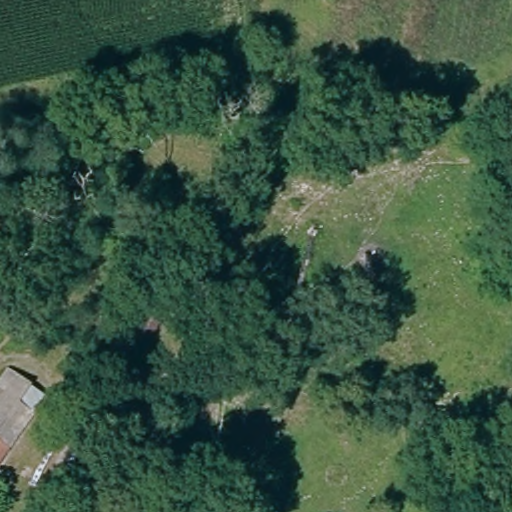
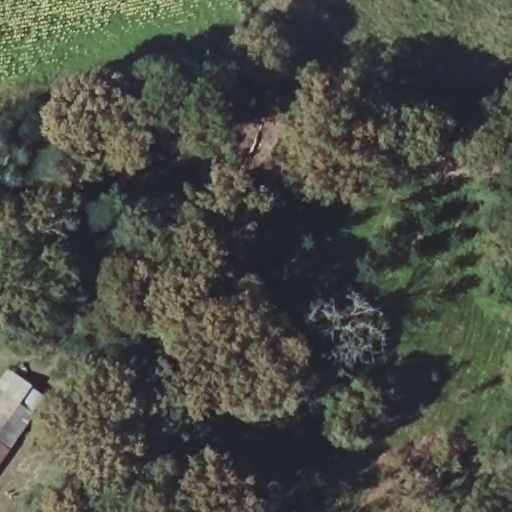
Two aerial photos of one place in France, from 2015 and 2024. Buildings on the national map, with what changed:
unchanged [(7,373),(48,397),(0,468),(0,384),(7,373)]

